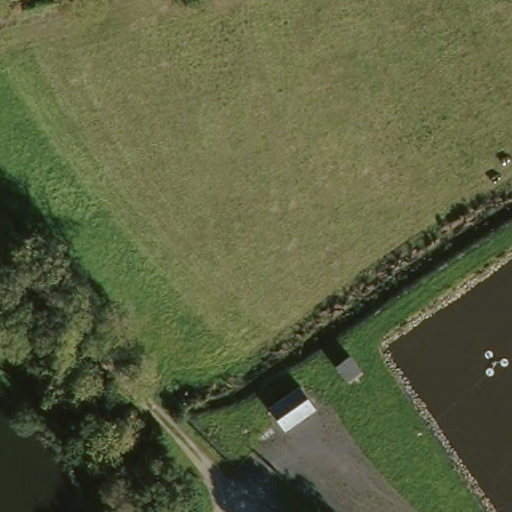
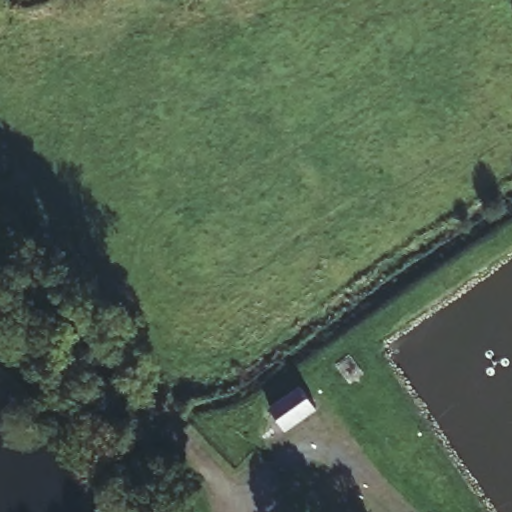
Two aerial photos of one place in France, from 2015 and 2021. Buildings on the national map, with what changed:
unchanged [(315,408),(284,429),(268,406),(299,385),(315,408)]

